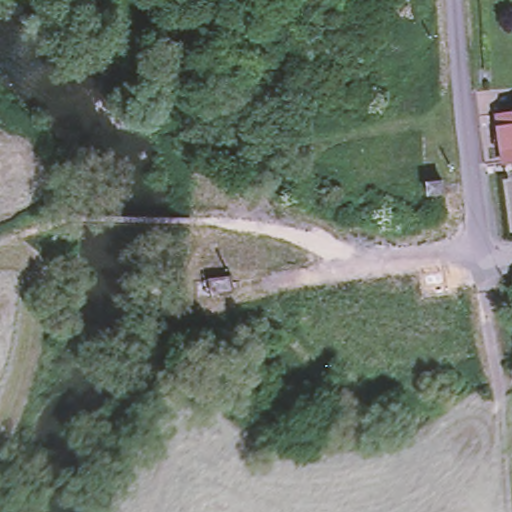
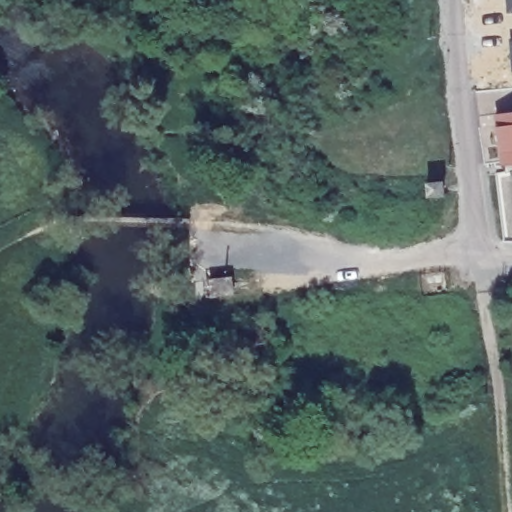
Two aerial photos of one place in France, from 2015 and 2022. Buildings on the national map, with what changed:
unchanged [(500,113),(512,111),(512,161),(506,162),(500,113)]
unchanged [(235,293),(212,297),(209,280),(233,277),(235,293)]

